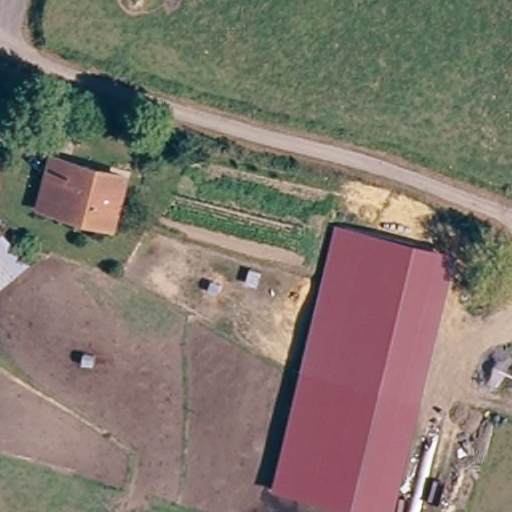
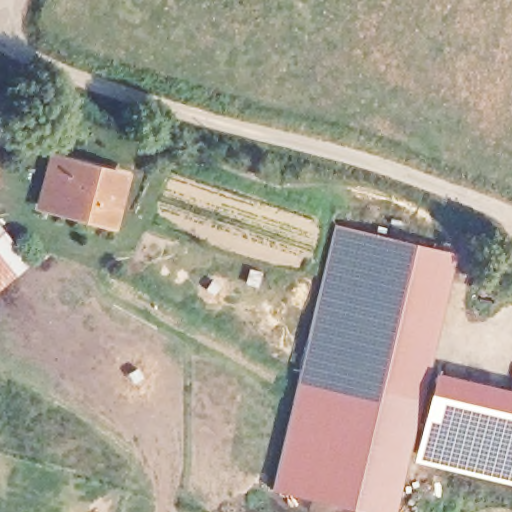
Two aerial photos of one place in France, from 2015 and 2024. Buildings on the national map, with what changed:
unchanged [(116,226),(48,210),(40,207),(54,158),(61,160),(128,176),(116,226)]
unchanged [(26,255),(29,260),(0,283),(0,225),(26,255)]
unchanged [(312,370),(345,226),(454,254),(418,396),(312,370)]
unchanged [(418,396),(390,512),(361,512),(283,493),(312,370),(418,396)]
new [(436,371),(512,389),(512,484),(413,460),(436,371)]

